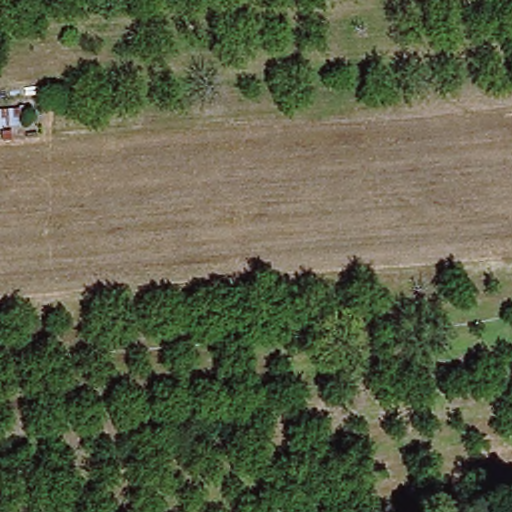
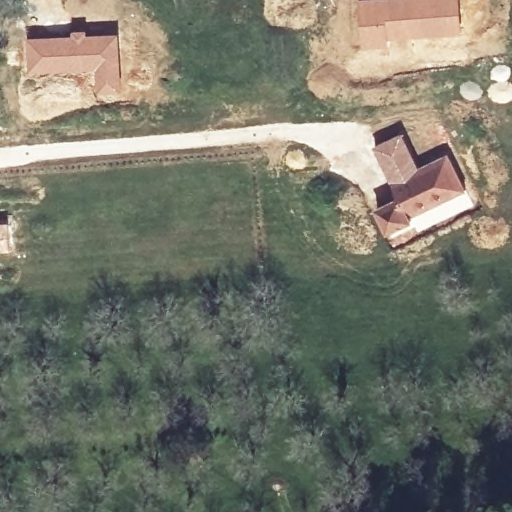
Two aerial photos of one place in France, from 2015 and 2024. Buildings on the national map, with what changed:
new [(388,40),(388,46),(360,47),(357,0),(458,0),(461,35),(388,40)]
new [(71,33),(118,31),(121,90),(98,91),(96,68),(29,71),(26,37),(71,33)]
new [(373,146),(403,132),(419,166),(447,153),(465,193),(472,206),(416,233),(411,223),(386,235),(372,209),(396,196),(373,146)]
new [(7,221),(11,251),(0,252),(0,221),(7,221)]

